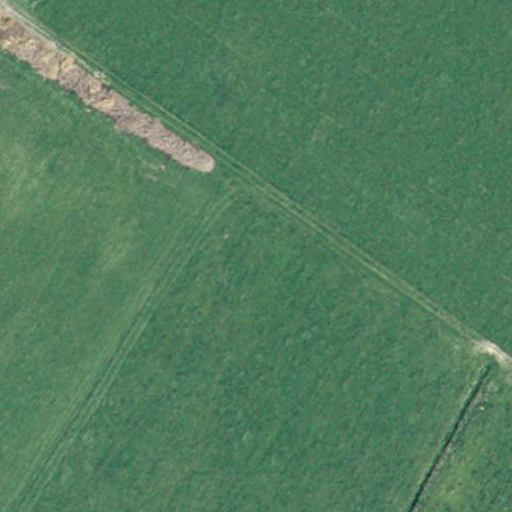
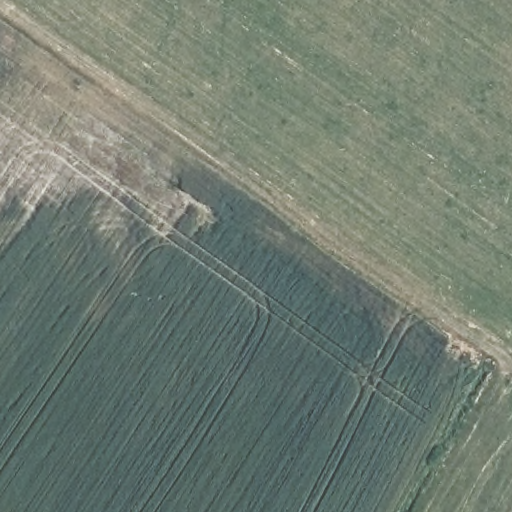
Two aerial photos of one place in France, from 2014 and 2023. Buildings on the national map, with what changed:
[]

